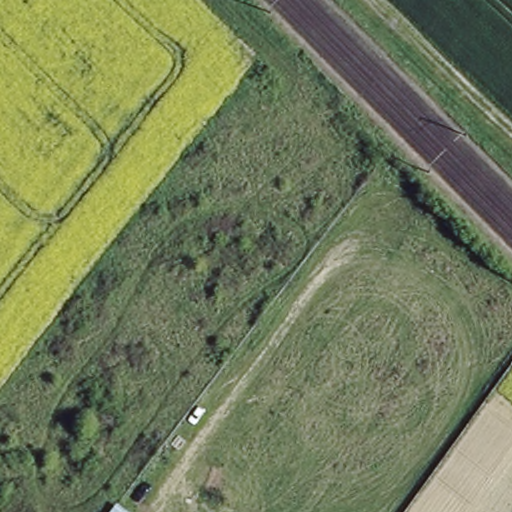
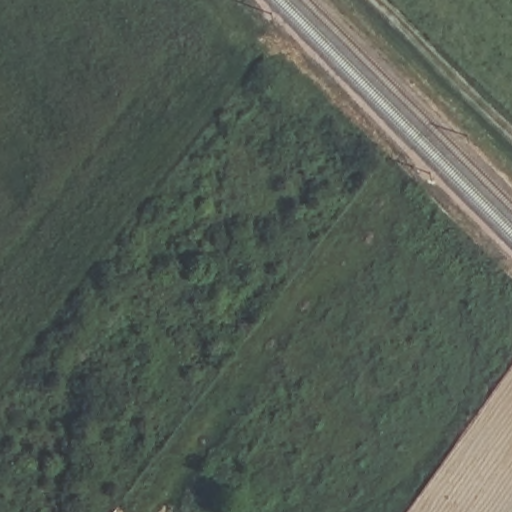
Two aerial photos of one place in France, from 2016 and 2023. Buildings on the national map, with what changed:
unchanged [(120,512),(110,512),(113,508),(120,512)]

